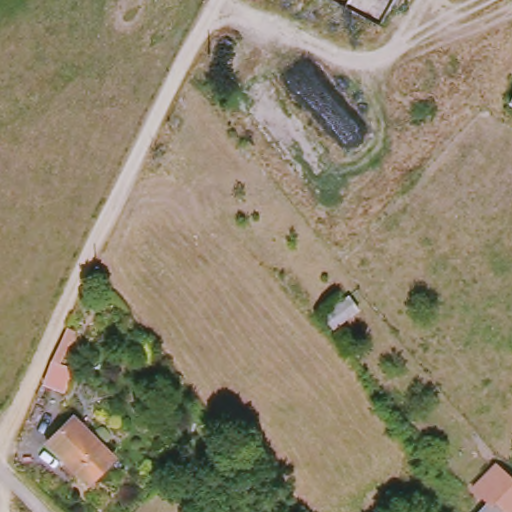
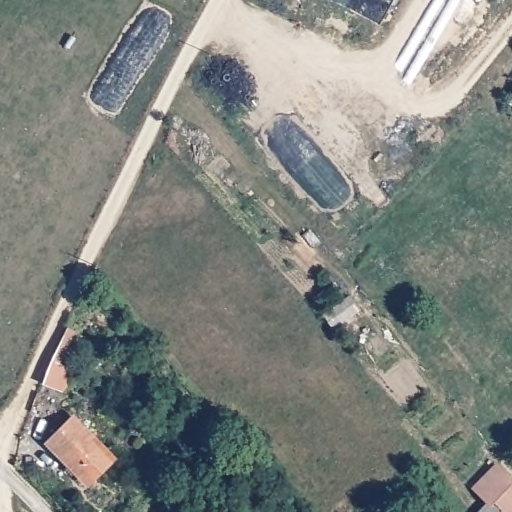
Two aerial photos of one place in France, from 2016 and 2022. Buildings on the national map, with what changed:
unchanged [(50,445),(76,419),(113,461),(87,485),(50,445)]
unchanged [(493,507),(487,500),(481,492),(503,465),(512,475),(512,512),(488,512),(493,507)]

